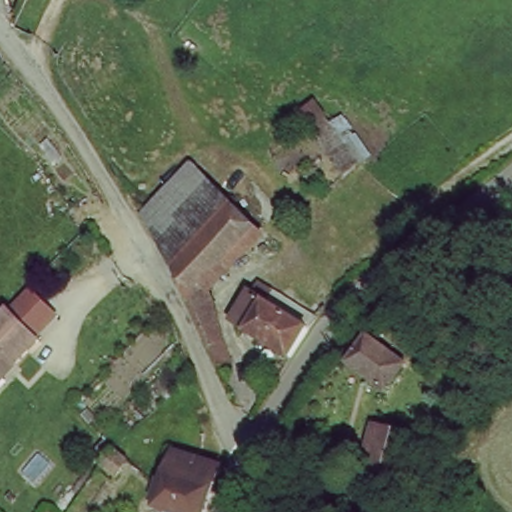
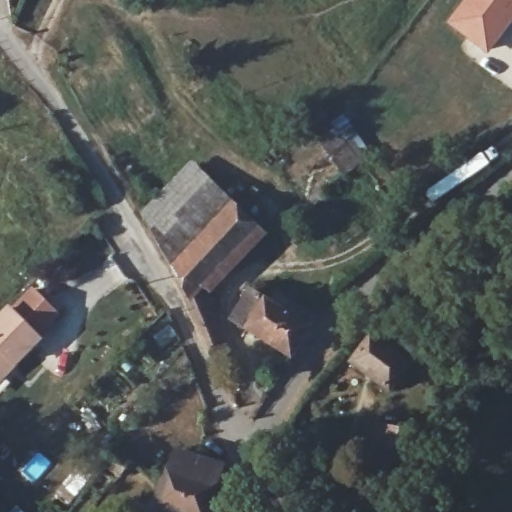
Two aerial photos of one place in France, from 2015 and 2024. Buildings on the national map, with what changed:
new [(512,0),(512,21),(486,55),(445,21),(461,0),(512,0)]
unchanged [(339,144),(351,132),(371,157),(344,179),(301,113),(316,104),(339,144)]
unchanged [(188,169),(226,213),(176,269),(141,220),(188,169)]
unchanged [(226,213),(253,240),(213,295),(238,361),(220,371),(176,269),(226,213)]
unchanged [(246,342),(246,338),(231,327),(260,290),(289,311),(315,331),(308,343),(290,372),(246,342)]
unchanged [(16,310),(48,342),(23,365),(0,389),(0,325),(8,317),(16,310)]
unchanged [(408,401),(355,362),(373,337),(426,377),(408,401)]
unchanged [(378,468),(388,427),(417,435),(406,475),(378,468)]
unchanged [(221,477),(221,483),(220,488),(218,492),(215,504),(212,512),(158,512),(171,477),(153,471),(163,443),(181,450),(178,461),(221,475),(221,477)]
unchanged [(146,470),(143,475),(130,470),(125,482),(103,472),(106,467),(110,462),(114,458),(146,470)]

